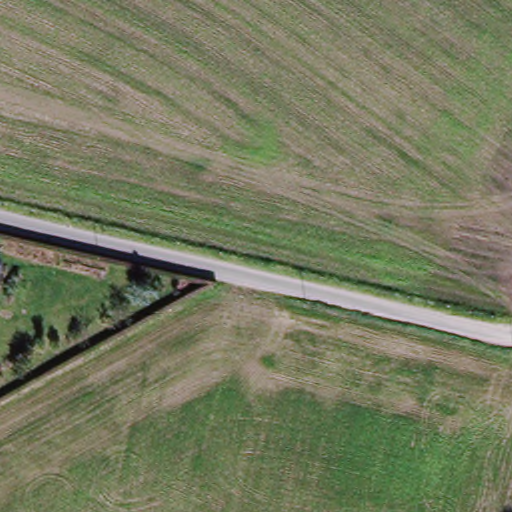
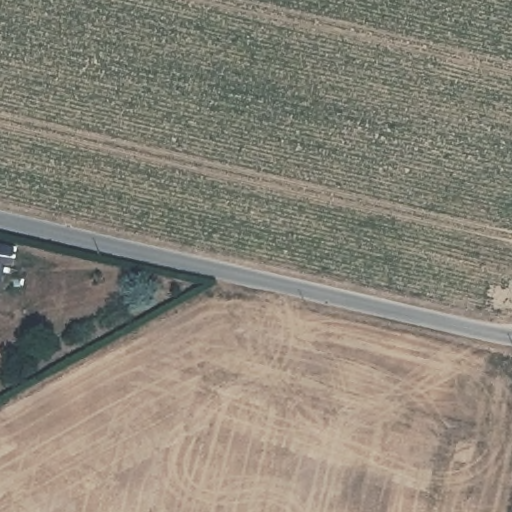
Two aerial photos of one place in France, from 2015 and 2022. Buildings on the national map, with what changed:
unchanged [(0,283),(0,267),(3,267),(0,283)]

